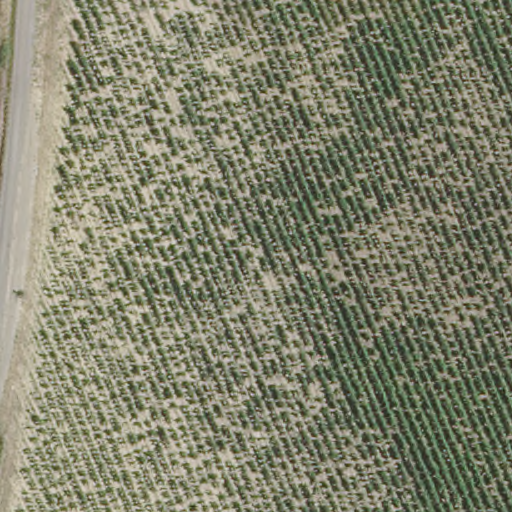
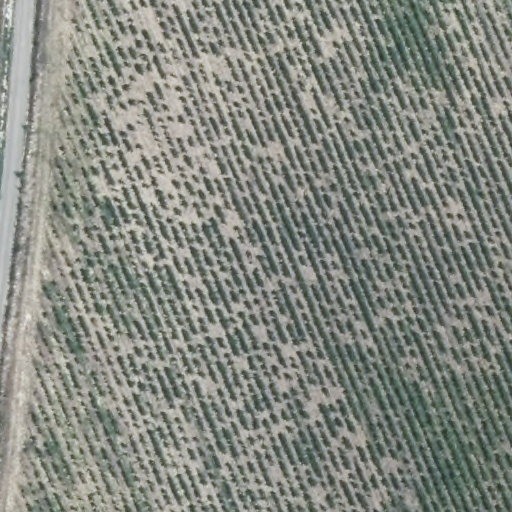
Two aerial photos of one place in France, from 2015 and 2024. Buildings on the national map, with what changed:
[]

